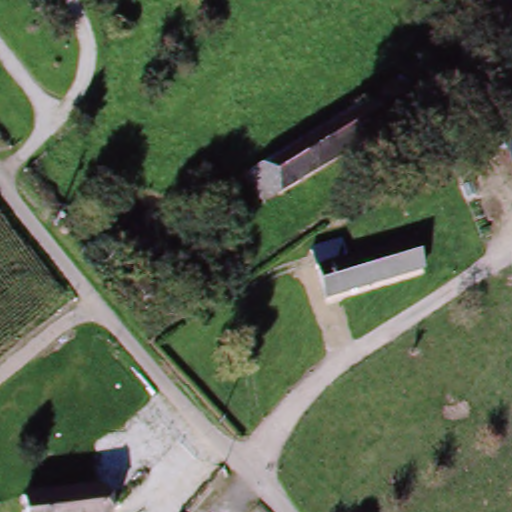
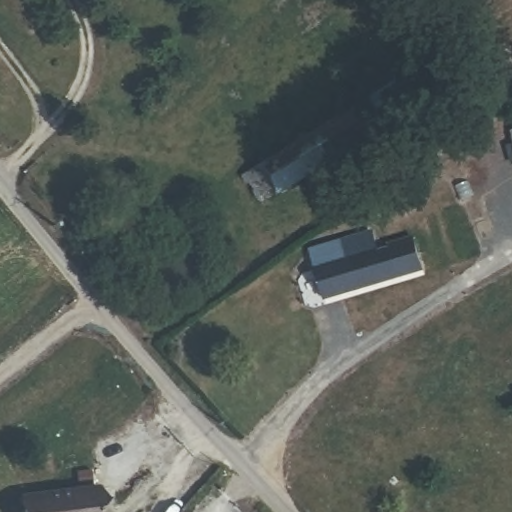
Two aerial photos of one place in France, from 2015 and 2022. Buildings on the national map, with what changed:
unchanged [(418,108),(372,137),(354,108),(401,79),(418,108)]
unchanged [(354,108),(372,137),(259,205),(241,177),(354,108)]
unchanged [(390,245),(414,238),(423,270),(324,299),(310,251),(340,242),(346,261),(391,248),(390,245)]
unchanged [(25,500),(99,490),(102,512),(26,512),(25,500)]

